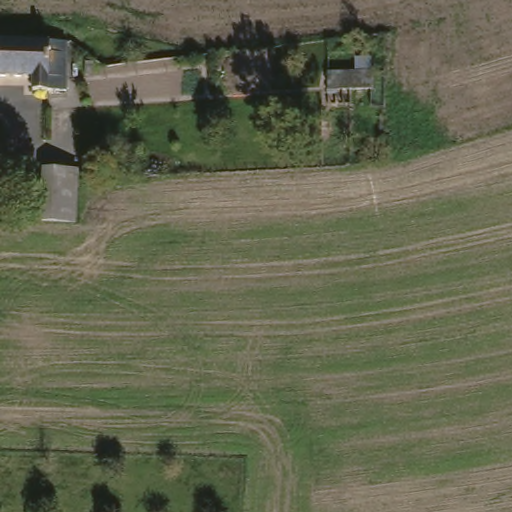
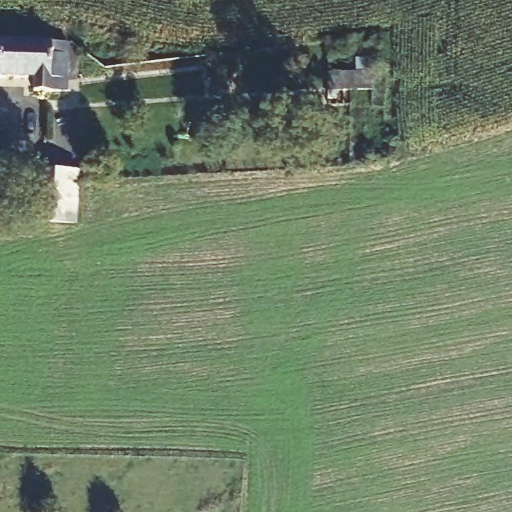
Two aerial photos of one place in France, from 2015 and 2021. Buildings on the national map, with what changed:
unchanged [(52,56),(70,56),(70,92),(36,92),(35,77),(0,77),(0,38),(51,39),(52,56)]
unchanged [(90,173),(90,181),(88,185),(77,217),(53,218),(51,173),(90,173)]

